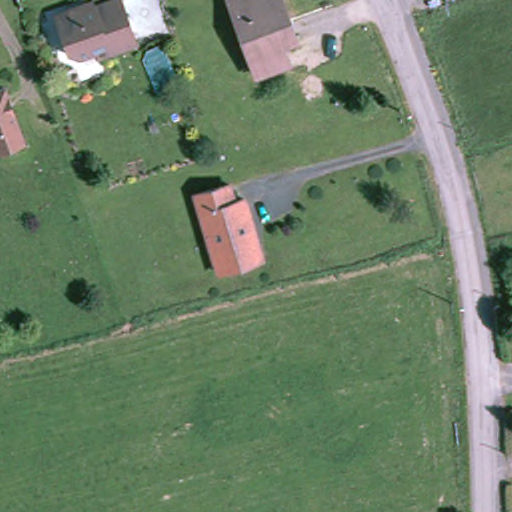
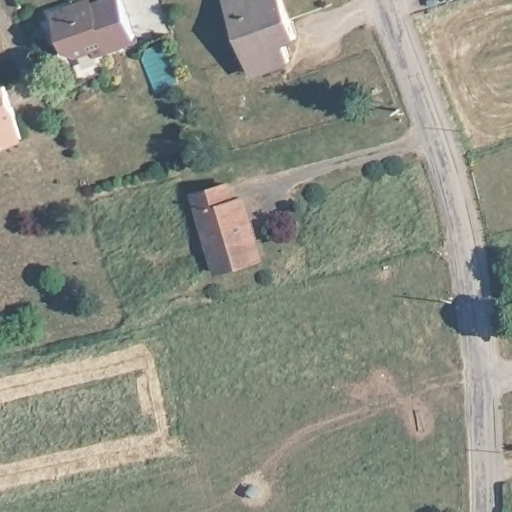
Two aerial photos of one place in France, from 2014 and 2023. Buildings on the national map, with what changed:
unchanged [(259,76),(252,57),(232,0),(285,0),(300,41),(285,46),(292,65),(259,76)]
unchanged [(90,59),(79,54),(67,17),(87,10),(89,15),(130,1),(145,46),(110,60),(107,53),(90,59)]
unchanged [(30,143),(9,150),(2,136),(0,137),(0,96),(14,91),(30,143)]
unchanged [(267,263),(230,275),(205,198),(239,187),(245,205),(254,202),(263,231),(273,261),(267,263)]

